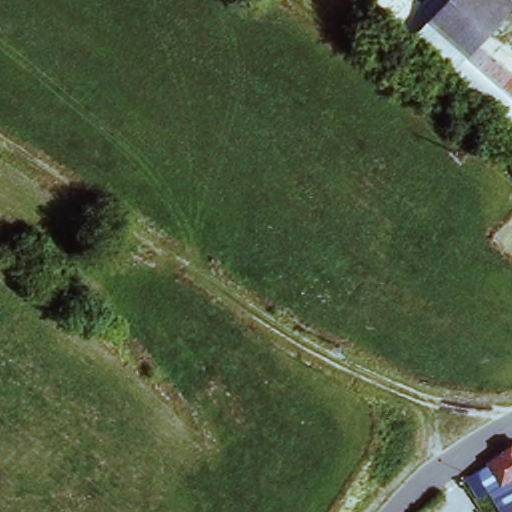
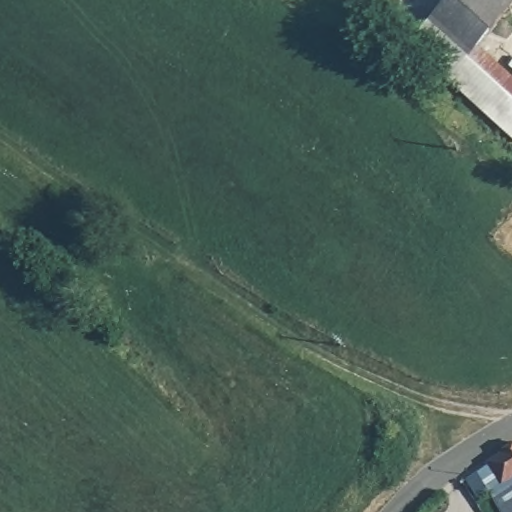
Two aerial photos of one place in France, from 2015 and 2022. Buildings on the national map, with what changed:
unchanged [(440,0),(510,0),(476,38),(449,70),(409,35),(440,0)]
unchanged [(476,38),(512,69),(512,125),(449,70),(476,38)]
unchanged [(512,438),(512,475),(511,475),(508,470),(485,484),(473,465),(485,457),(483,456),(512,438)]
unchanged [(506,512),(495,492),(512,484),(512,512),(506,512)]

